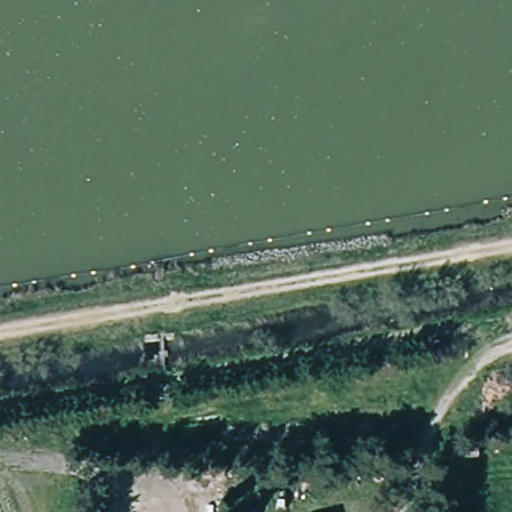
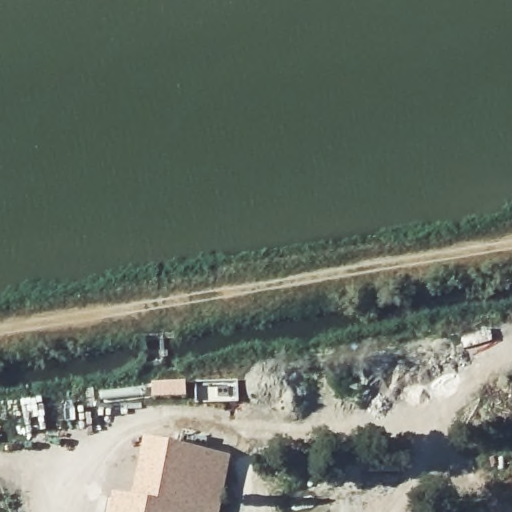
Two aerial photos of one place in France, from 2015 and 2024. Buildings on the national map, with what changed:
unchanged [(170,385),(170,396),(170,399),(155,397),(155,385),(170,385)]
new [(133,500),(146,440),(229,457),(220,512),(110,512),(114,496),(133,500)]
demolished [(227,456),(226,475),(207,474),(208,455),(227,456)]

